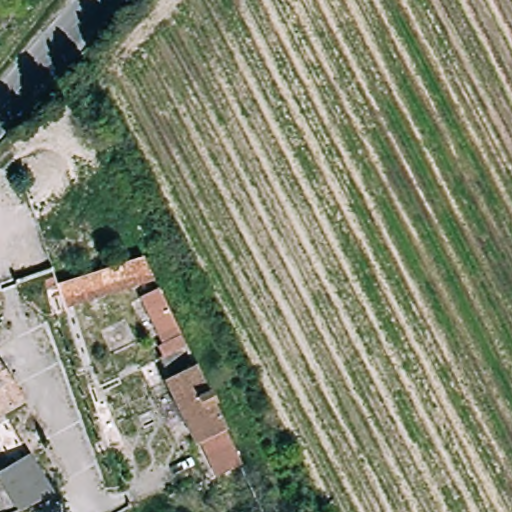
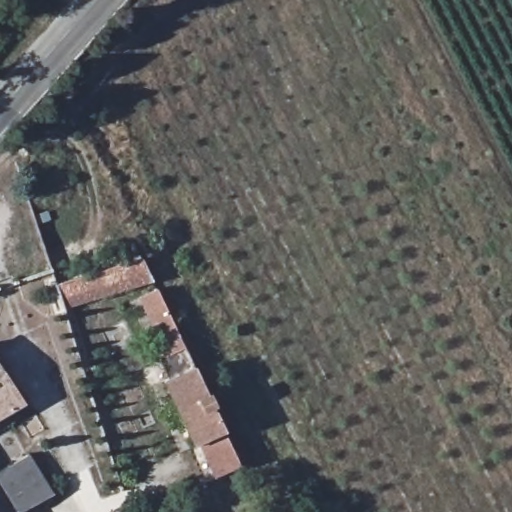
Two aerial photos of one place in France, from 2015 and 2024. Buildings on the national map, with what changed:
unchanged [(148,277),(63,306),(56,287),(141,261),(148,277)]
unchanged [(195,448),(163,383),(170,381),(159,360),(170,353),(143,297),(156,292),(241,468),(216,481),(200,447),(195,448)]
unchanged [(0,422),(0,372),(21,411),(0,422)]
unchanged [(51,502),(30,512),(0,512),(0,476),(28,459),(51,502)]

